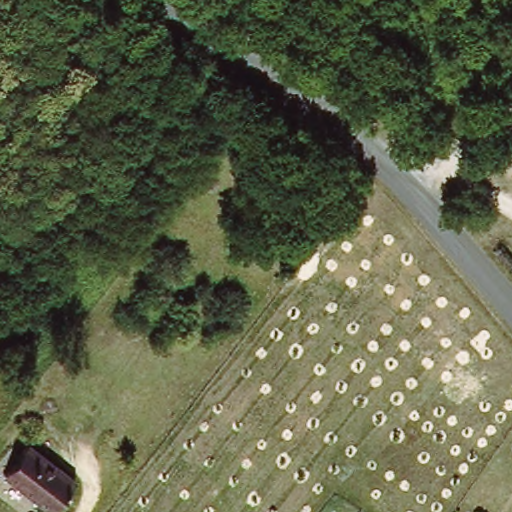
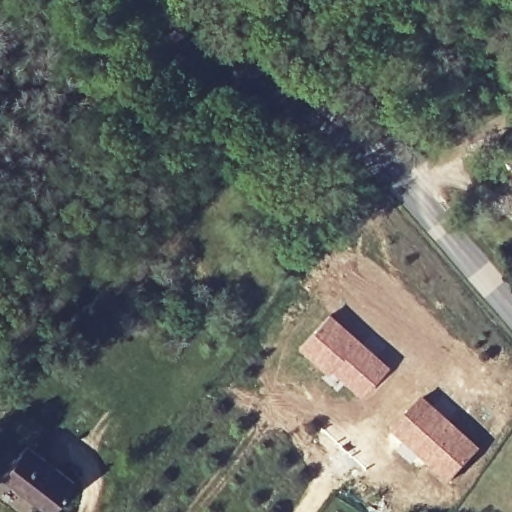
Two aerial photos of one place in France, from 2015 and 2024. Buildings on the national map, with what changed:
new [(330,311),(392,364),(361,398),(328,374),(326,377),(297,349),(330,311)]
new [(423,395),(482,446),(447,485),(392,429),(423,395)]
unchanged [(20,454),(72,490),(57,512),(43,512),(0,483),(20,454)]

